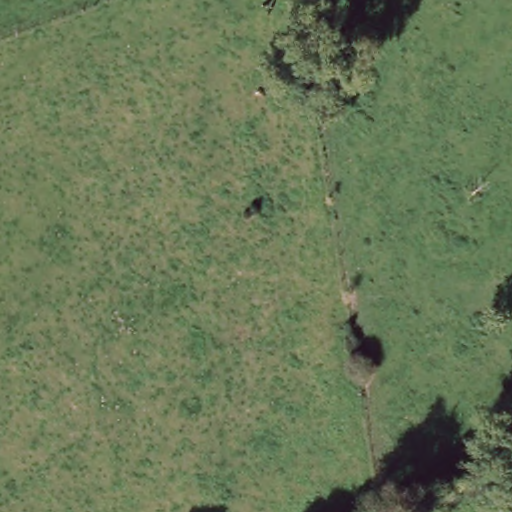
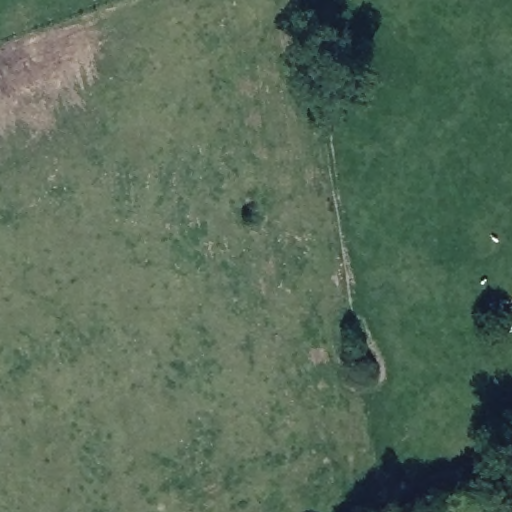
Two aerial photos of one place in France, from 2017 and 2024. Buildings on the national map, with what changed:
[]

